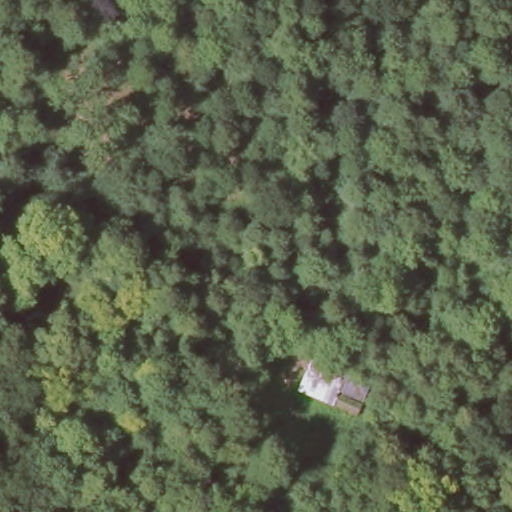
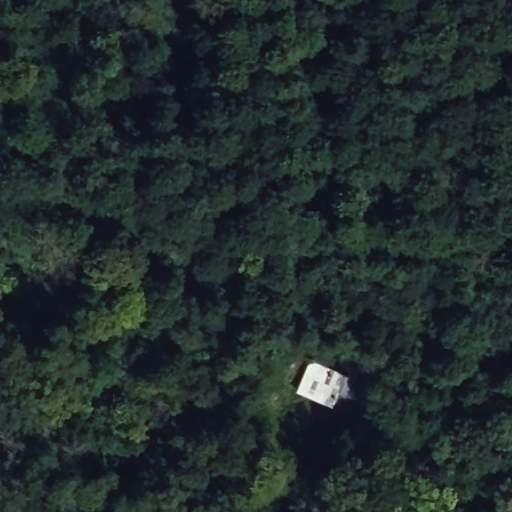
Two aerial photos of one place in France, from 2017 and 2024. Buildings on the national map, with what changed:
unchanged [(355,414),(295,393),(307,354),(366,379),(355,414)]

